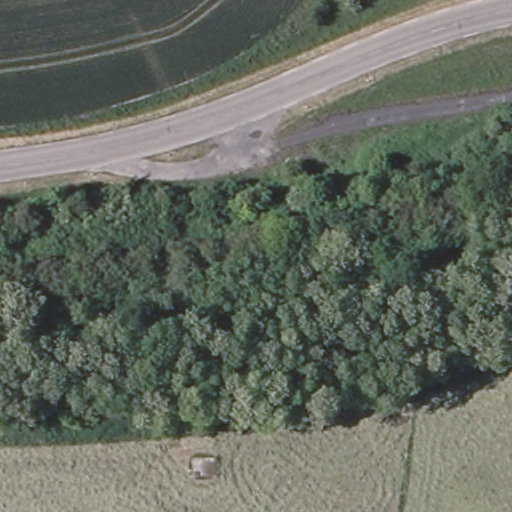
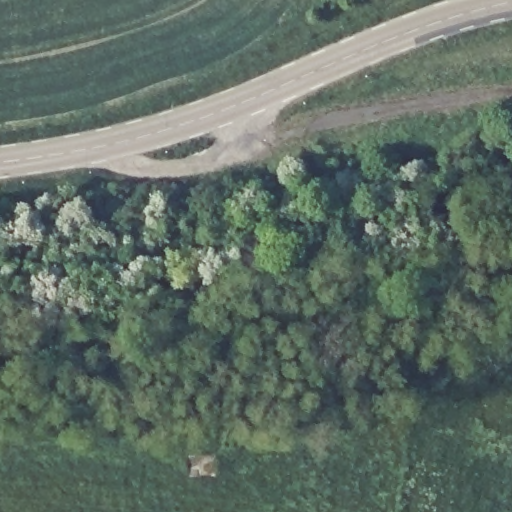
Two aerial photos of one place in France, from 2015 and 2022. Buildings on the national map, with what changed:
unchanged [(189,477),(188,455),(216,454),(217,476),(189,477)]

